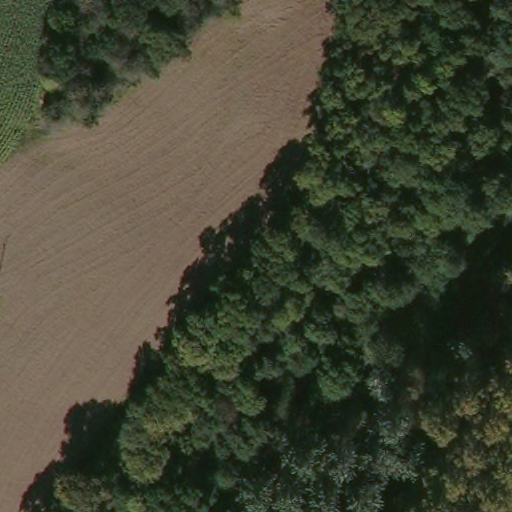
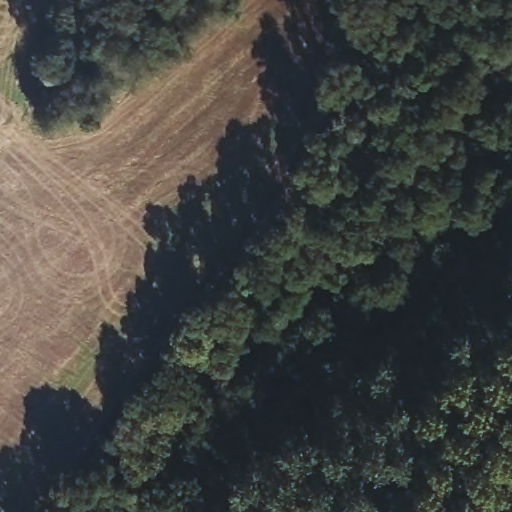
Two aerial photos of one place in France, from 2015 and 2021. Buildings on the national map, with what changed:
[]

